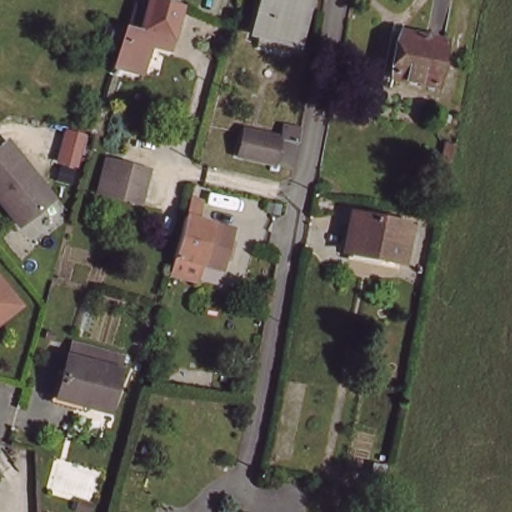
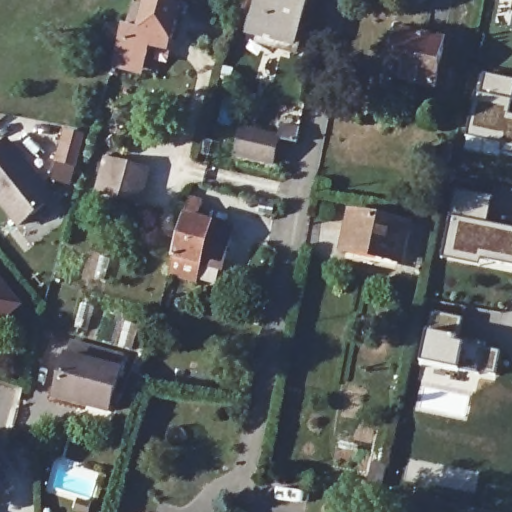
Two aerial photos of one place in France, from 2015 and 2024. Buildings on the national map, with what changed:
unchanged [(118,59),(127,26),(131,27),(138,5),(148,7),(150,0),(160,0),(182,5),(173,39),(172,38),(169,46),(152,41),(145,66),(143,72),(117,65),(118,59)]
unchanged [(258,31),(252,29),(260,0),(306,0),(295,41),(292,50),(255,40),(258,31)]
unchanged [(434,88),(390,79),(399,32),(443,42),(434,88)]
new [(501,152),(502,144),(466,136),(477,92),(481,94),(485,75),(512,80),(512,97),(508,115),(512,116),(512,155),(501,152)]
unchanged [(300,128),(297,143),(278,139),(282,124),(300,128)]
new [(67,130),(84,135),(76,164),(59,160),(67,130)]
unchanged [(242,131),(278,139),(278,141),(273,164),(237,155),(242,134),(242,131)]
unchanged [(0,147),(7,141),(52,199),(19,225),(0,201),(0,147)]
unchanged [(133,201),(97,191),(102,174),(106,159),(112,160),(148,170),(143,187),(139,204),(133,201)]
new [(480,260),(479,266),(442,258),(457,191),(490,198),(485,225),(512,230),(512,267),(480,260)]
unchanged [(201,262),(196,282),(170,275),(174,259),(190,199),(200,201),(195,220),(211,224),(232,229),(222,267),(201,262)]
unchanged [(407,225),(399,262),(347,252),(354,215),(407,225)]
unchanged [(0,321),(0,281),(20,305),(0,321)]
new [(495,376),(479,372),(478,375),(460,370),(460,375),(421,367),(421,361),(427,332),(433,312),(462,320),(459,339),(458,341),(464,343),(484,345),(483,350),(500,352),(495,376)]
unchanged [(123,357),(109,412),(56,398),(71,342),(123,357)]
unchanged [(77,511),(80,502),(92,505),(89,512),(79,512),(77,511)]

